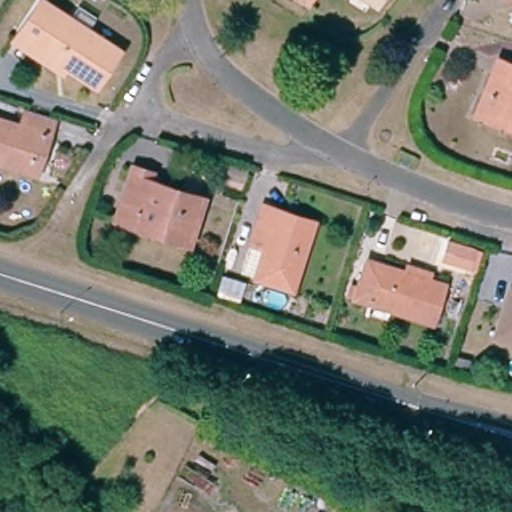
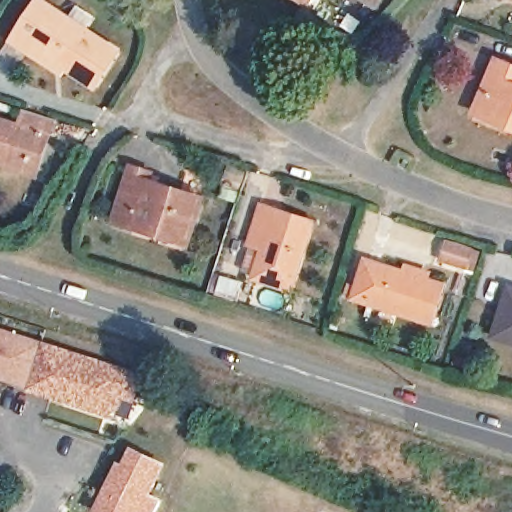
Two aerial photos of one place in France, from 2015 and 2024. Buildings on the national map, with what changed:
unchanged [(113,47),(91,83),(63,66),(60,72),(25,50),(8,40),(15,29),(33,0),(36,0),(113,47)]
unchanged [(310,7),(300,0),(314,0),(310,7)]
unchanged [(367,0),(383,0),(378,7),(367,0)]
unchanged [(508,0),(512,0),(512,2),(508,0)]
unchanged [(467,117),(484,75),(492,60),(512,68),(512,137),(509,136),(476,121),(467,117)]
unchanged [(0,166),(0,120),(12,124),(17,108),(44,117),(38,134),(24,174),(16,171),(0,166)]
unchanged [(154,234),(109,219),(127,163),(146,169),(143,177),(200,196),(187,236),(185,244),(154,234)]
unchanged [(247,242),(260,206),(275,212),(308,222),(306,231),(287,287),(253,277),(255,269),(239,264),(247,242)]
unchanged [(426,323),(348,300),(361,260),(401,272),(403,265),(425,271),(423,280),(437,284),(426,323)]
unchanged [(486,333),(500,290),(512,294),(512,342),(486,333)]
new [(29,386),(0,376),(0,329),(43,343),(29,386)]
new [(28,388),(29,386),(43,343),(141,376),(134,400),(123,396),(119,407),(106,414),(64,401),(45,394),(28,388)]
new [(120,462),(129,445),(165,463),(150,493),(161,500),(155,512),(89,512),(87,511),(114,460),(120,462)]

